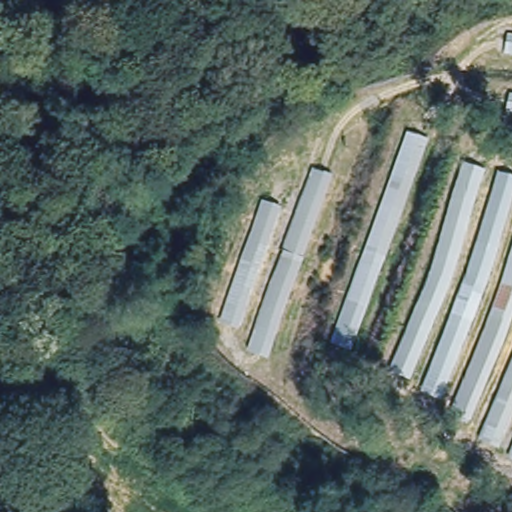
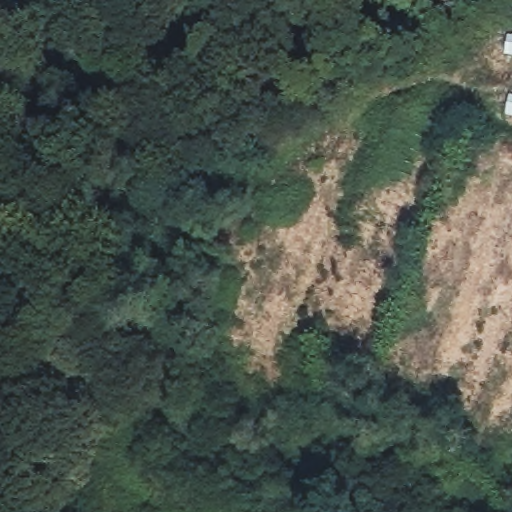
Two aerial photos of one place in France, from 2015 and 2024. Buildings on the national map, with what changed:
unchanged [(506,54),(507,34),(512,34),(512,54),(506,54)]
unchanged [(512,94),(512,113),(506,112),(509,93),(512,94)]
demolished [(323,365),(402,127),(426,136),(347,369),(323,365)]
demolished [(388,370),(457,164),(512,174),(512,421),(506,436),(388,370)]
demolished [(249,350),(254,333),(221,321),(262,199),(295,211),(312,169),(334,175),(268,360),(249,350)]
demolished [(388,370),(506,436),(512,421),(512,456),(388,370)]

